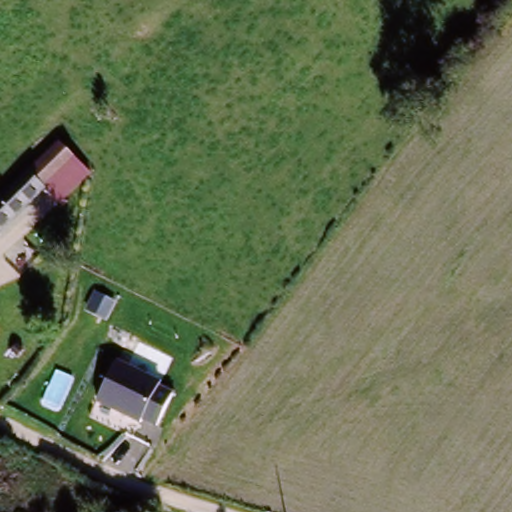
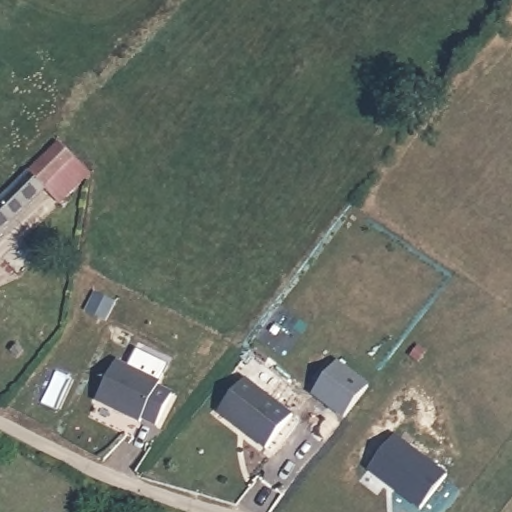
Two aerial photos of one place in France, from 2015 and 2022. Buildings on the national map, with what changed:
unchanged [(90,171),(65,198),(50,185),(0,239),(0,206),(57,143),(90,171)]
unchanged [(156,382),(154,386),(171,396),(155,428),(140,421),(138,424),(95,403),(116,361),(156,382)]
new [(338,362),(370,387),(345,419),(314,394),(338,362)]
new [(244,379),(293,416),(266,451),(217,413),(244,379)]
new [(399,431),(451,471),(422,510),(370,469),(399,431)]

